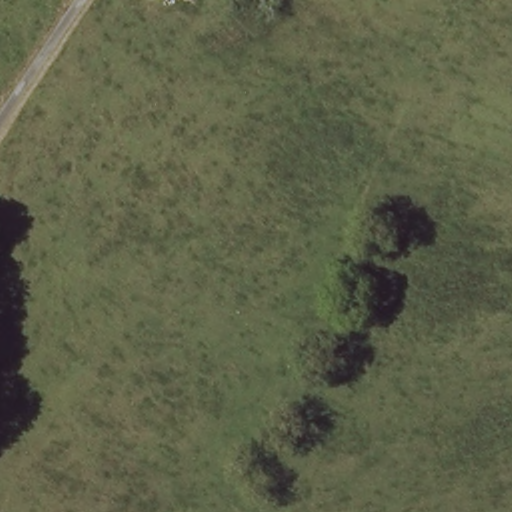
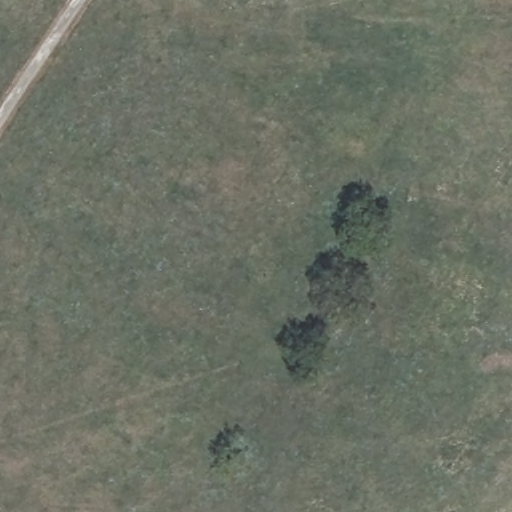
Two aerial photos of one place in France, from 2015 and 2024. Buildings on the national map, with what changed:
[]

